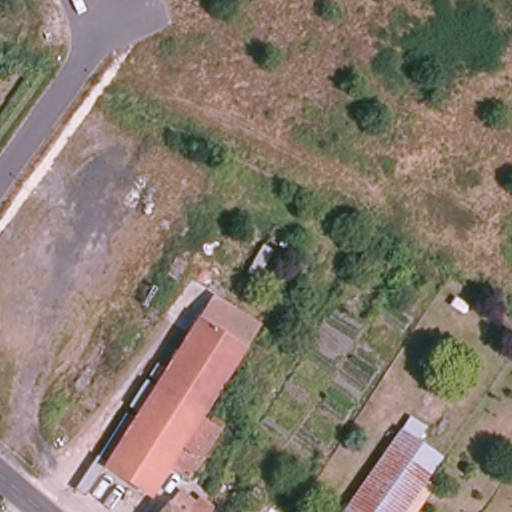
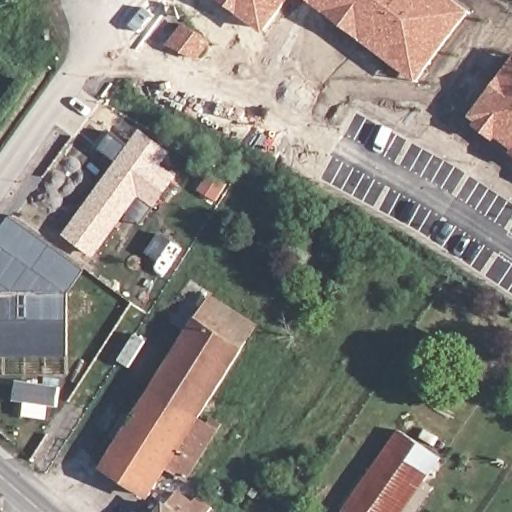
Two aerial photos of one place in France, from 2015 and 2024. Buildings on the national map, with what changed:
new [(266,35),(220,0),(292,0),(266,35)]
new [(472,12),(419,84),(308,0),(455,0),(472,12)]
new [(141,129),(173,152),(163,165),(178,176),(156,209),(140,197),(94,258),(63,235),(141,129)]
new [(72,294),(73,358),(2,360),(0,301),(0,234),(12,216),(89,270),(72,294)]
unchanged [(215,295),(261,324),(206,415),(222,425),(187,481),(169,471),(151,498),(102,469),(215,295)]
unchanged [(440,460),(404,512),(342,512),(400,431),(440,460)]
unchanged [(179,512),(160,512),(166,502),(179,512)]

